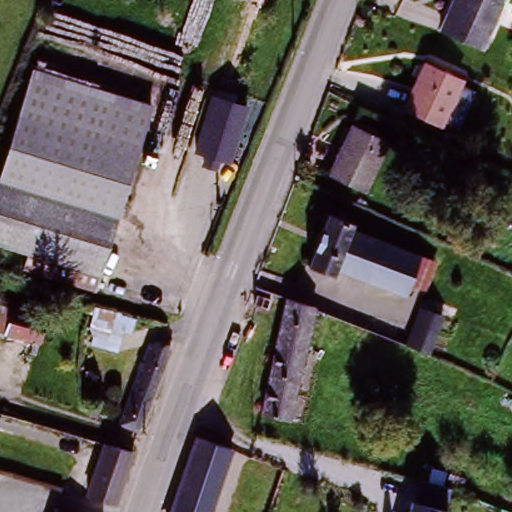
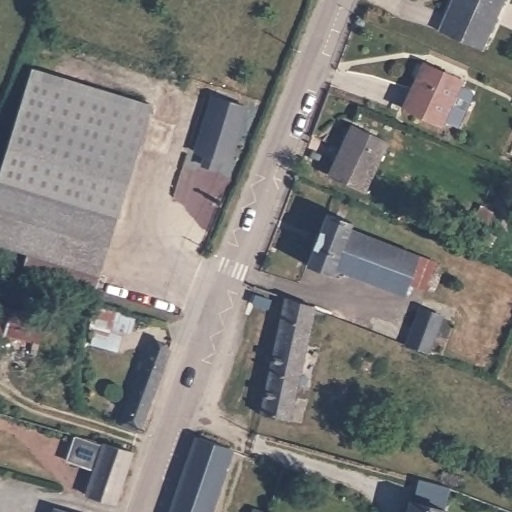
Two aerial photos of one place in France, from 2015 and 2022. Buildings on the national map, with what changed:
unchanged [(437,31),(453,0),(504,0),(480,51),(437,31)]
unchanged [(440,125),(406,110),(426,63),(461,78),(440,125)]
unchanged [(0,178),(31,75),(149,110),(118,214),(0,180),(0,178)]
unchanged [(206,158),(209,149),(200,146),(217,91),(250,101),(234,156),(225,154),(223,163),(206,158)]
unchanged [(354,126),(390,143),(367,193),(331,176),(354,126)]
unchanged [(0,243),(0,180),(118,214),(101,272),(29,251),(0,243)]
unchanged [(326,212),(351,222),(349,228),(420,256),(404,295),(334,268),(331,274),(306,264),(326,212)]
unchanged [(101,272),(96,289),(24,268),(29,251),(101,272)]
unchanged [(255,298),(270,302),(266,314),(252,309),(255,298)]
unchanged [(312,310),(287,420),(260,414),(286,299),(313,306),(312,310)]
unchanged [(457,319),(440,352),(409,338),(424,305),(457,319)]
unchanged [(6,307),(40,315),(34,339),(1,331),(6,307)]
unchanged [(111,321),(116,308),(134,313),(129,327),(111,321)]
unchanged [(174,348),(145,428),(126,421),(155,341),(174,348)]
unchanged [(204,428),(234,438),(206,512),(172,512),(204,428)]
unchanged [(89,498),(105,447),(113,450),(132,456),(116,507),(89,498)]
unchanged [(410,507),(416,481),(447,490),(441,512),(408,512),(410,507)]
unchanged [(56,508),(66,512),(54,512),(56,508)]

